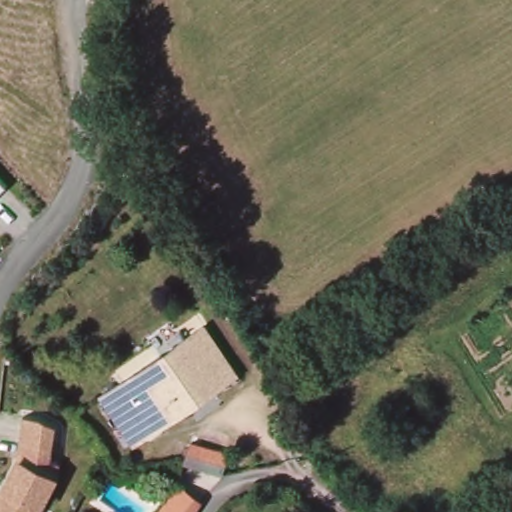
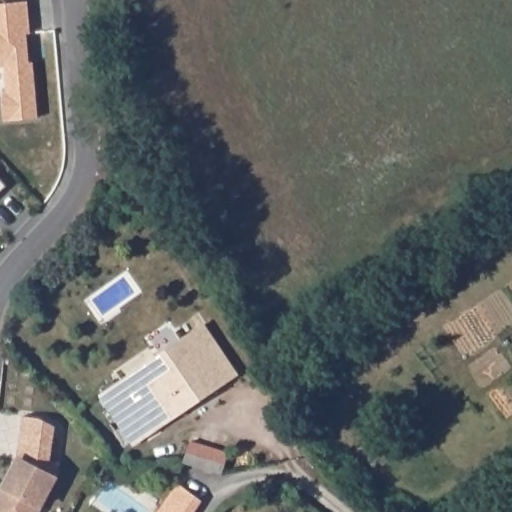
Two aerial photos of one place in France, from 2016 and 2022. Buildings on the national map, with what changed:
new [(30,32),(26,33),(28,44),(29,62),(33,61),(38,117),(4,120),(1,92),(6,91),(4,62),(0,63),(0,3),(27,0),(30,32)]
unchanged [(0,191),(0,181),(4,186),(0,191)]
unchanged [(204,320),(239,378),(130,442),(99,393),(204,320)]
unchanged [(22,414),(54,421),(49,461),(59,461),(56,481),(39,512),(0,512),(0,486),(14,461),(22,414)]
unchanged [(190,457),(195,443),(219,452),(227,455),(220,474),(188,464),(190,457)]
unchanged [(208,509),(206,512),(158,512),(177,487),(208,509)]
new [(507,512),(503,512),(506,510),(507,512)]

